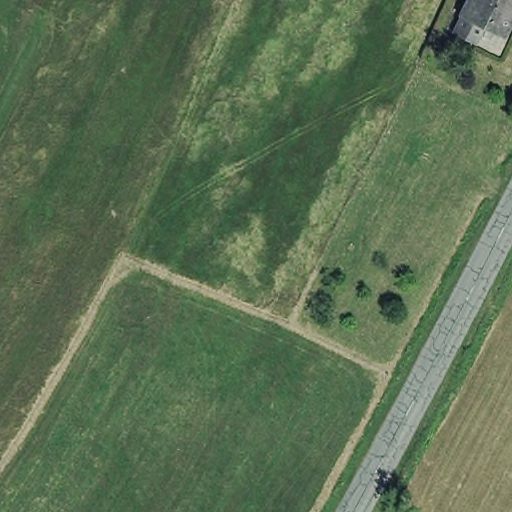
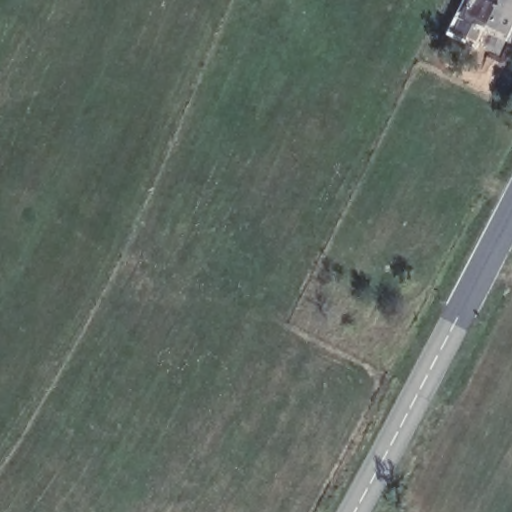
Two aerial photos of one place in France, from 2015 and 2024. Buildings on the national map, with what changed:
unchanged [(512,0),(512,15),(503,32),(485,23),(477,40),(463,33),(457,30),(465,13),(470,0),(512,0)]

